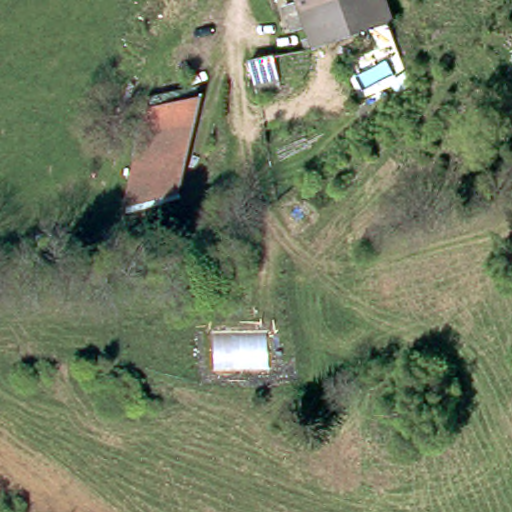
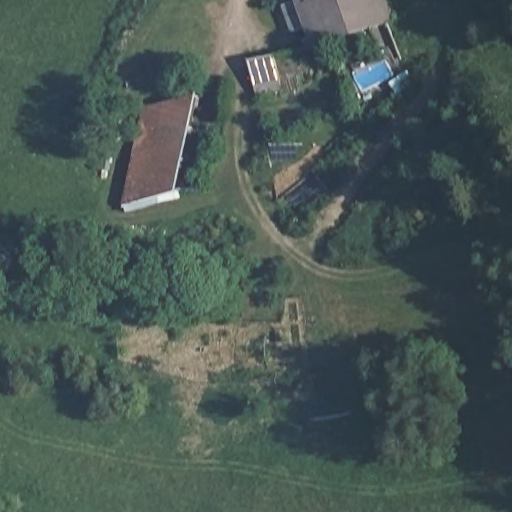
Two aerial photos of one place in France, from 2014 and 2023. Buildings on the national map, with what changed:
unchanged [(392,20),(319,52),(298,0),(386,0),(392,20)]
unchanged [(264,39),(275,34),(289,64),(279,68),(264,39)]
unchanged [(197,103),(177,209),(124,213),(142,109),(197,103)]

